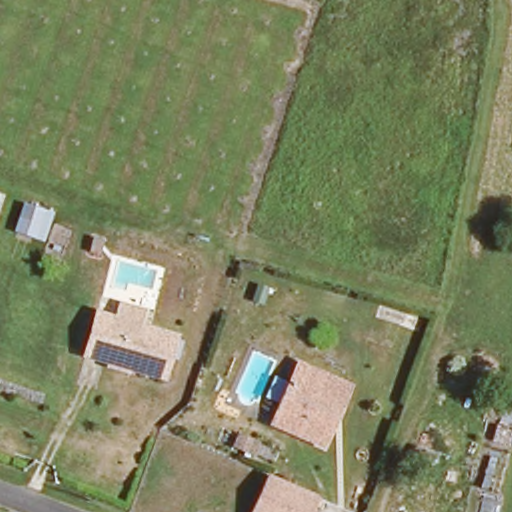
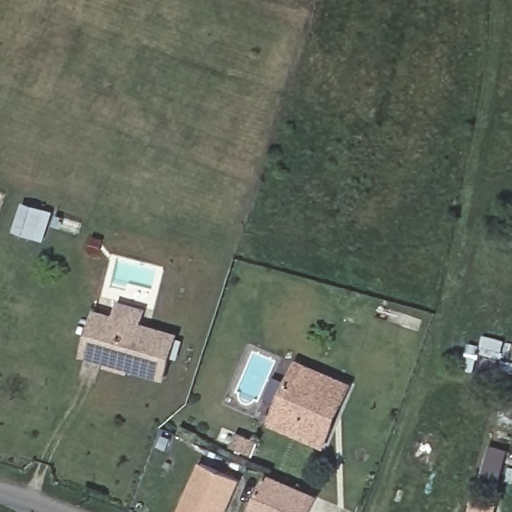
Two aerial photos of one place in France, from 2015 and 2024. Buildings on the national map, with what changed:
unchanged [(95,310),(174,332),(165,373),(85,351),(95,310)]
unchanged [(323,440),(269,417),(295,355),(351,380),(344,396),(332,421),(323,440)]
new [(243,481),(229,512),(180,512),(202,463),(243,481)]
unchanged [(308,512),(300,512),(260,495),(268,475),(315,493),(313,498),(308,512)]
unchanged [(300,512),(252,512),(260,495),(300,512)]

